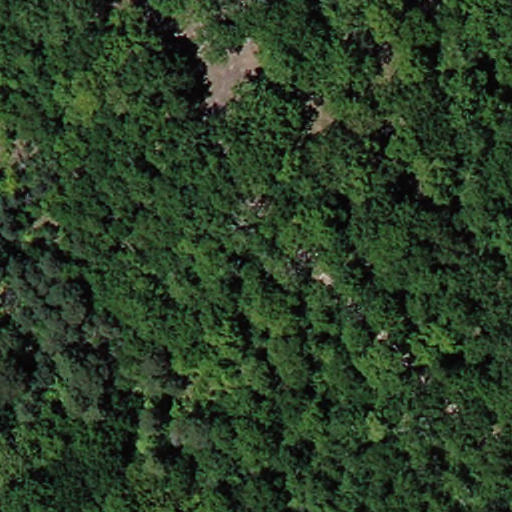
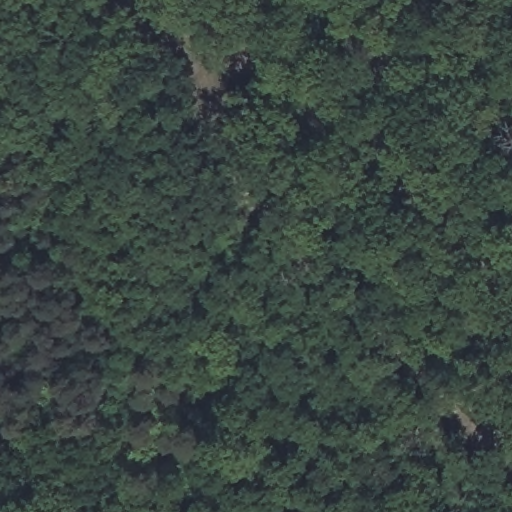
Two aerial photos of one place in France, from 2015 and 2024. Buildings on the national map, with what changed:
[]

